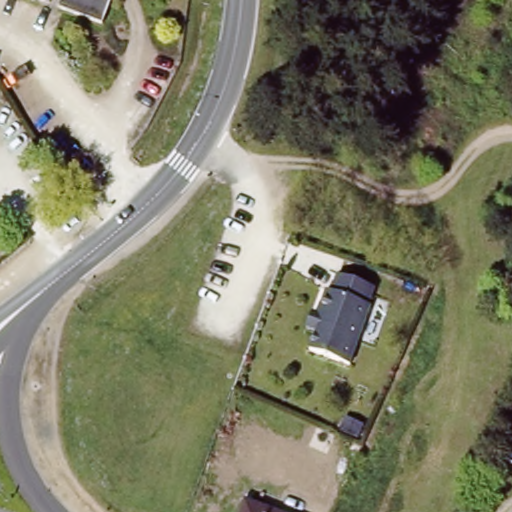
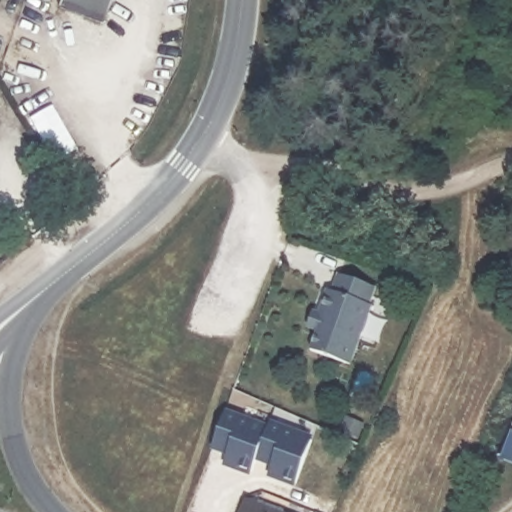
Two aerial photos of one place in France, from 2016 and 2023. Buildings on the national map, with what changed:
unchanged [(107,19),(65,4),(64,4),(65,0),(114,0),(107,19)]
unchanged [(328,289),(331,290),(337,273),(374,286),(368,303),(370,304),(350,363),(310,348),(317,329),(307,326),(312,309),(320,312),(328,289)]
new [(267,429),(251,472),(224,462),(228,451),(212,446),(225,414),(267,429)]
new [(312,440),(296,483),(269,473),(272,462),(257,457),(269,425),(312,440)]
unchanged [(506,452),(512,435),(512,455),(506,452)]
unchanged [(292,512),(243,512),(249,496),(292,512)]

